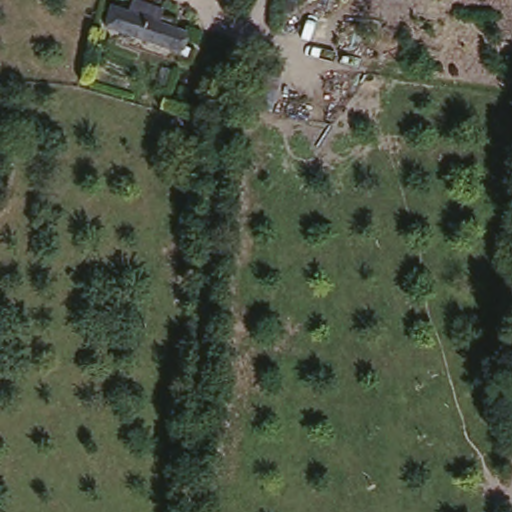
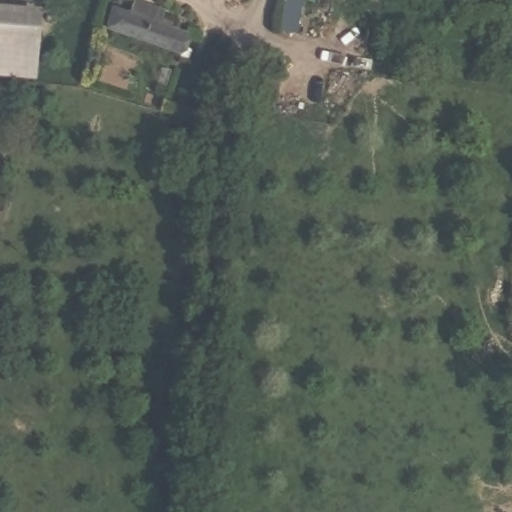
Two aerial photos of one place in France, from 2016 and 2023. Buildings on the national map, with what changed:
unchanged [(132,0),(136,0),(167,9),(162,26),(182,31),(176,51),(105,30),(110,12),(126,18),(132,0)]
new [(278,32),(283,0),(302,0),(296,36),(278,32)]
new [(33,81),(0,78),(0,5),(37,9),(33,81)]

